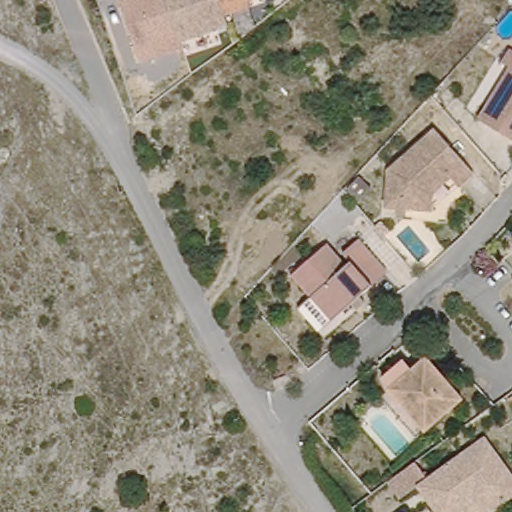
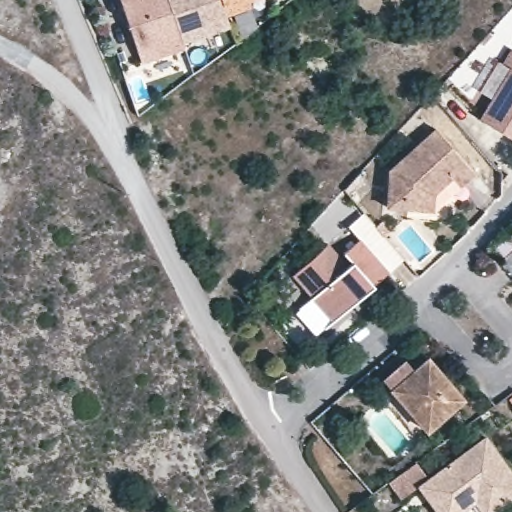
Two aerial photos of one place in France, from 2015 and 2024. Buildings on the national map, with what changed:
unchanged [(260,0),(249,3),(251,9),(226,18),(228,28),(182,43),(183,49),(141,63),(121,0),(260,0)]
unchanged [(502,68),(511,54),(512,54),(512,143),(479,124),(510,73),(502,68)]
unchanged [(459,192),(452,183),(434,199),(433,216),(385,213),(388,174),(435,133),(475,178),(459,192)]
unchanged [(352,304),(332,321),(292,275),(329,243),(348,265),(352,262),(344,253),(360,239),(385,268),(370,281),(374,285),(361,297),(366,302),(357,310),(352,304)]
unchanged [(381,377),(408,354),(417,364),(430,353),(470,399),(430,432),(381,377)]
unchanged [(460,512),(437,512),(435,509),(418,486),(485,437),(512,474),(512,497),(491,512),(466,512),(464,509),(460,512)]

